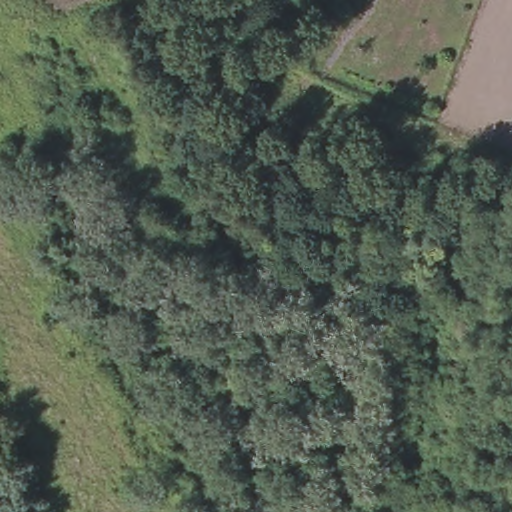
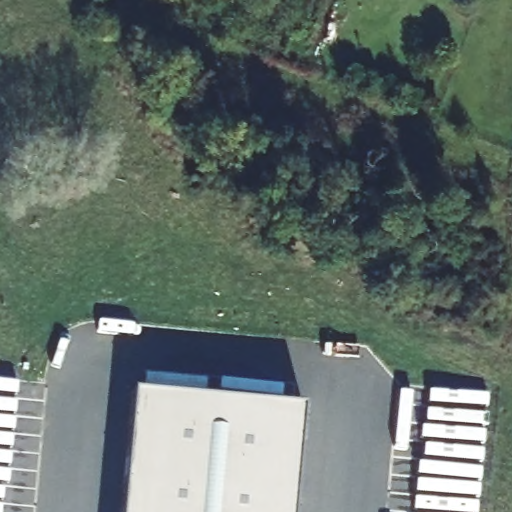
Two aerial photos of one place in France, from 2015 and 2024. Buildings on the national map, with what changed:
new [(300,410),(291,512),(121,512),(132,395),(300,410)]

